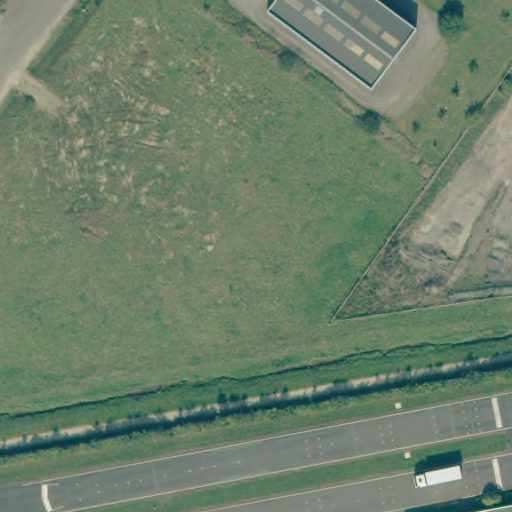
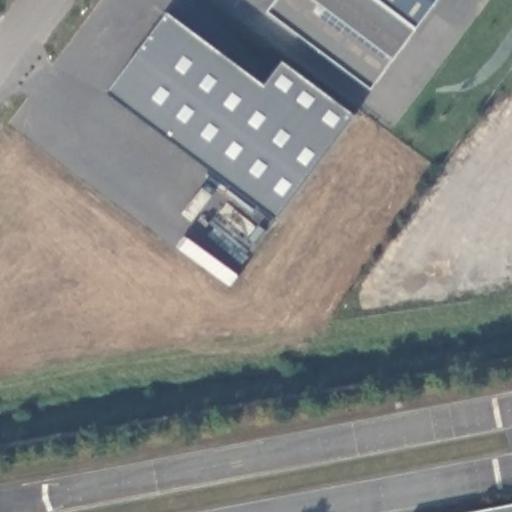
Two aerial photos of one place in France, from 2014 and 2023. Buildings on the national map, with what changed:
unchanged [(370,90),(265,11),(274,0),(375,0),(415,30),(370,90)]
new [(375,0),(438,0),(415,30),(375,0)]
new [(162,10),(260,84),(277,60),(348,114),(270,218),(101,90),(162,10)]
unchanged [(512,512),(478,512),(512,505),(512,512)]

